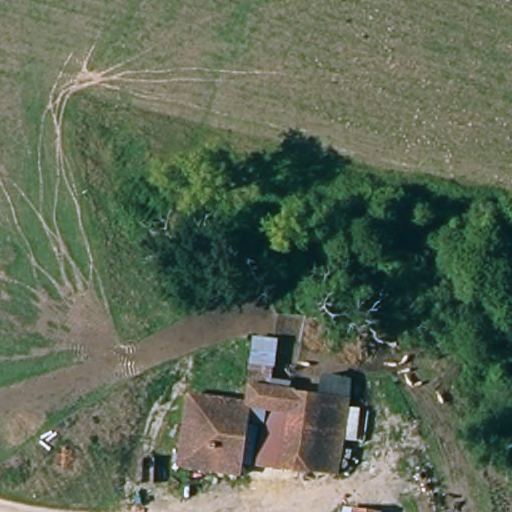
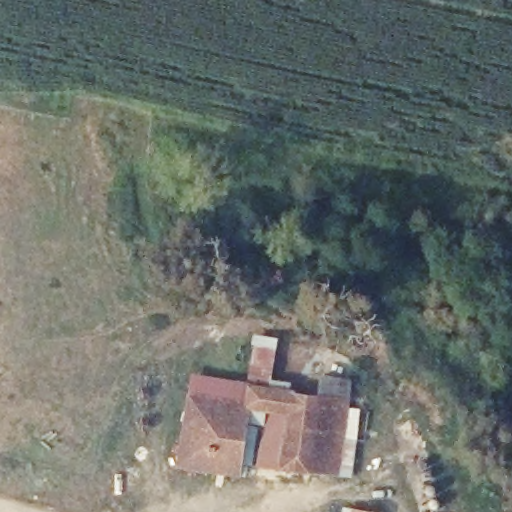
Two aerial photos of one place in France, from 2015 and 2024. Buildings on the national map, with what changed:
unchanged [(257,337),(281,339),(277,385),(318,392),(320,374),(353,379),(351,402),(255,389),(257,337)]
unchanged [(266,468),(272,405),(253,403),(255,389),(351,402),(343,479),(266,468)]
unchanged [(192,394),(253,403),(246,480),(183,471),(192,394)]
unchanged [(348,508),(383,512),(348,512),(348,508)]

